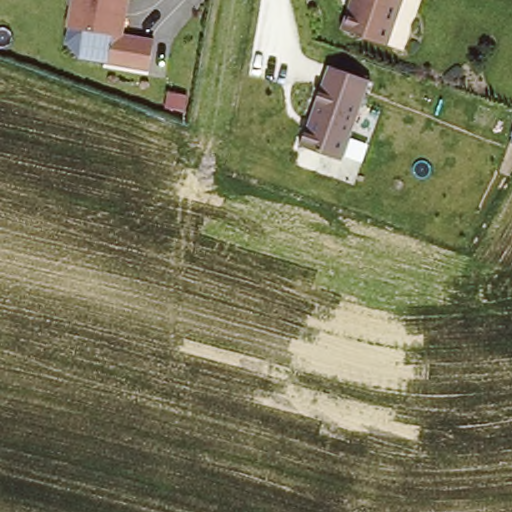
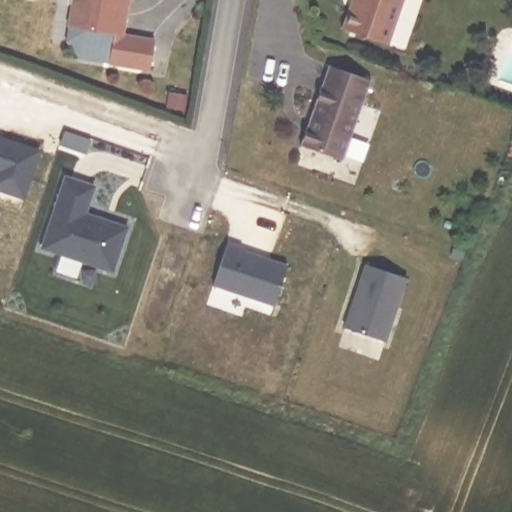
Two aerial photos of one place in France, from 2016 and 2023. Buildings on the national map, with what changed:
unchanged [(147,72),(107,66),(109,49),(111,36),(64,27),(69,0),(129,0),(123,34),(153,40),(147,72)]
unchanged [(340,30),(349,0),(401,0),(387,45),(340,30)]
unchanged [(370,79),(341,160),(300,143),(327,66),(370,79)]
new [(512,128),(512,146),(507,144),(512,128)]
new [(0,138),(39,151),(24,197),(0,189),(0,138)]
new [(43,278),(50,257),(37,253),(61,170),(100,181),(95,201),(134,213),(116,281),(100,276),(95,295),(43,278)]
new [(227,247),(242,251),(240,255),(257,260),(257,262),(267,266),(267,262),(286,268),(273,309),(212,290),(227,247)]
new [(343,327),(365,264),(407,277),(385,342),(343,327)]

